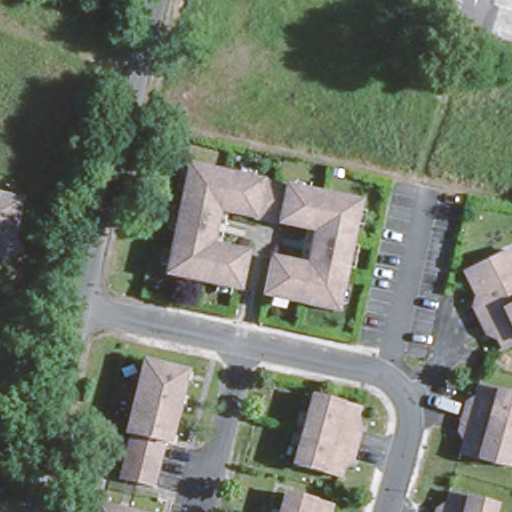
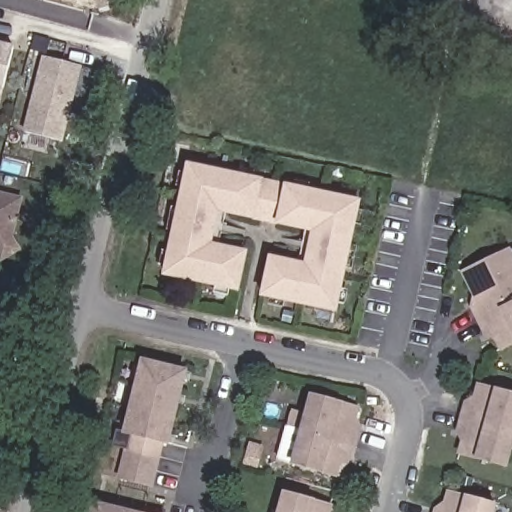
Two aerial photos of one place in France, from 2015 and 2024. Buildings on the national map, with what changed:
new [(15,47),(3,90),(0,102),(0,43),(15,47)]
new [(23,132),(41,56),(83,66),(64,142),(23,132)]
unchanged [(336,306),(262,290),(270,252),(305,259),(313,226),(218,206),(211,239),(246,247),(238,285),(164,269),(188,159),(360,196),(336,306)]
unchanged [(0,251),(0,193),(24,199),(14,236),(22,249),(5,259),(0,251)]
unchanged [(474,299),(458,267),(504,245),(512,261),(512,297),(474,316),(467,302),(474,299)]
unchanged [(487,326),(480,330),(474,316),(512,297),(512,337),(496,345),(487,326)]
unchanged [(169,444),(164,442),(153,486),(120,478),(130,434),(124,433),(142,360),(186,371),(169,444)]
unchanged [(468,399),(474,379),(512,389),(512,421),(511,426),(457,411),(461,397),(468,399)]
unchanged [(312,390),(358,403),(353,423),(360,425),(356,439),(302,424),(312,390)]
unchanged [(501,461),(455,448),(460,428),(453,426),(457,411),(511,426),(501,461)]
unchanged [(352,454),(345,452),(339,472),(293,459),(302,424),(356,439),(352,454)]
unchanged [(431,504),(439,507),(444,487),(491,500),(487,512),(429,512),(431,504)]
unchanged [(285,488),(331,500),(328,512),(278,512),(285,488)]
unchanged [(90,497),(148,512),(86,512),(90,497)]

